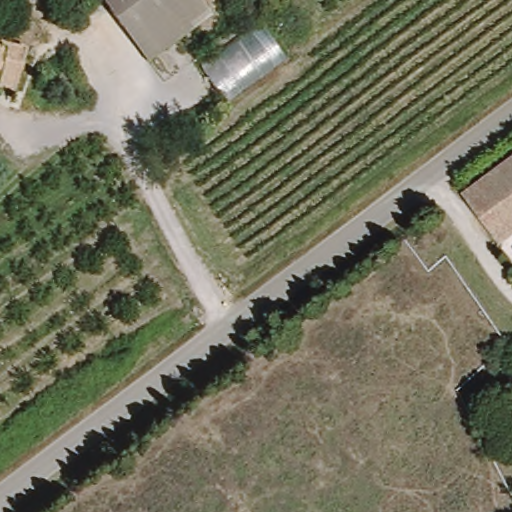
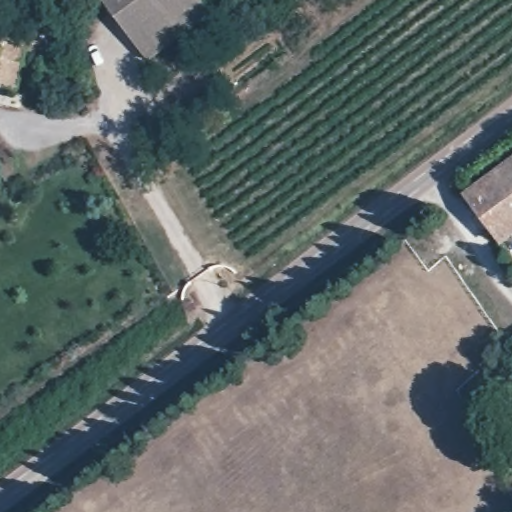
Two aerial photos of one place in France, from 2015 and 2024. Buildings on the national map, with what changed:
unchanged [(145,62),(101,0),(202,0),(209,10),(145,62)]
demolished [(221,106),(194,66),(260,20),(287,59),(221,106)]
unchanged [(27,48),(18,87),(0,82),(0,42),(27,48)]
demolished [(415,133),(426,124),(437,137),(426,147),(415,133)]
unchanged [(512,163),(512,246),(508,249),(468,197),(512,163)]

